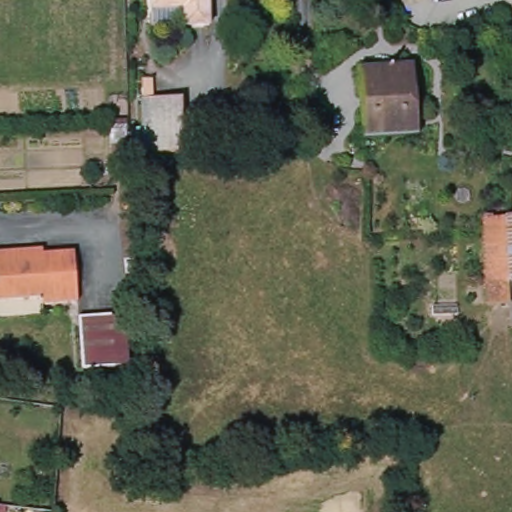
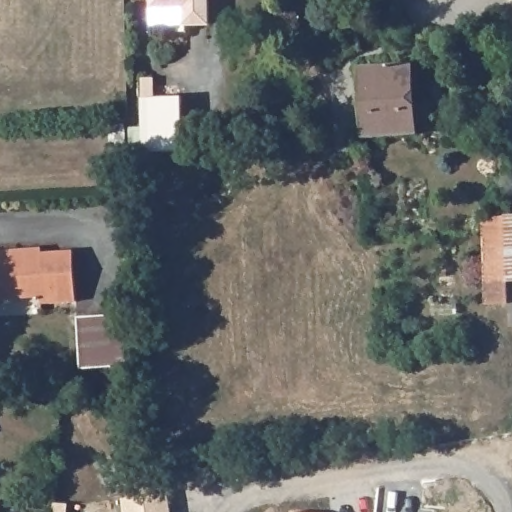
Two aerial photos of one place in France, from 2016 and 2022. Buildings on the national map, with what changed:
unchanged [(150,0),(208,0),(209,25),(181,26),(151,26),(150,6),(150,0)]
unchanged [(401,4),(401,0),(427,0),(427,4),(401,4)]
unchanged [(413,66),(418,130),(366,134),(362,69),(413,66)]
unchanged [(142,147),(142,100),(184,99),(184,147),(184,152),(159,154),(142,154),(142,147)]
unchanged [(511,305),(487,307),(483,216),(506,218),(512,218),(512,328),(510,328),(511,305)]
unchanged [(34,256),(72,255),(74,306),(38,307),(37,300),(0,300),(0,251),(33,251),(34,256)]
unchanged [(129,373),(115,373),(81,373),(82,321),(116,321),(130,321),(129,373)]

